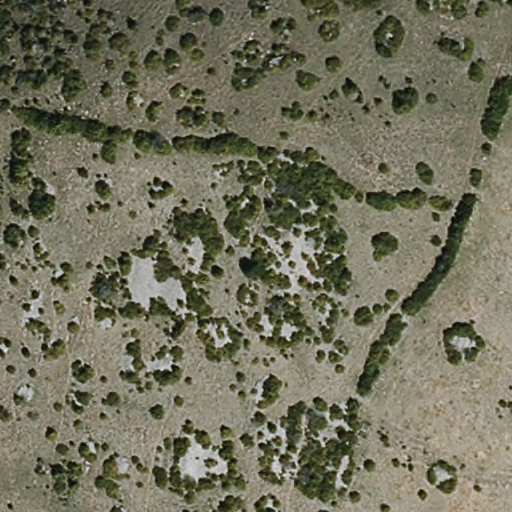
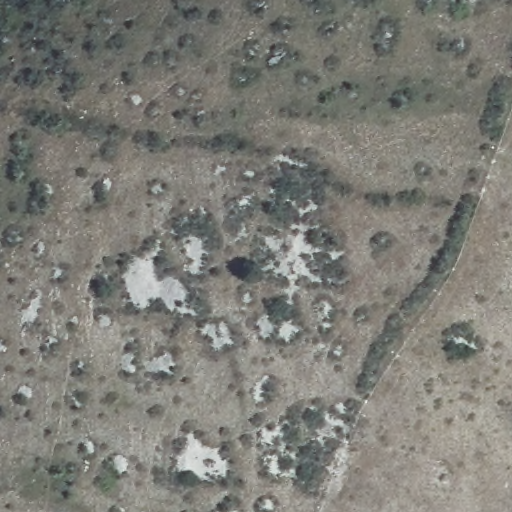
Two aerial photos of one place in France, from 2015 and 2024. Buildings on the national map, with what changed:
[]

